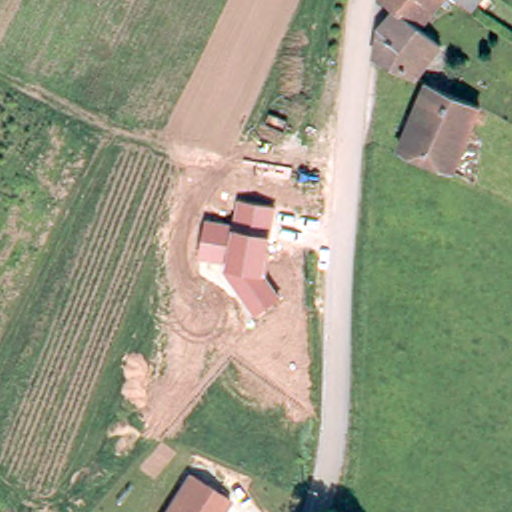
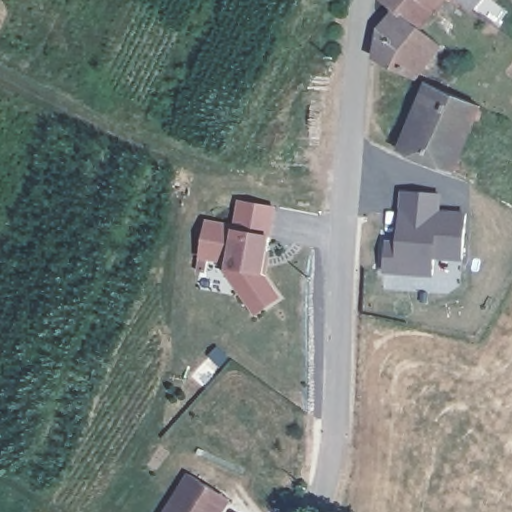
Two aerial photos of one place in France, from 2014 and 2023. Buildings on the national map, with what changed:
unchanged [(440,41),(416,73),(375,54),(378,26),(395,7),(385,0),(440,0),(420,23),(440,41)]
unchanged [(475,0),(470,6),(463,0),(475,0)]
unchanged [(400,150),(428,84),(435,86),(480,106),(452,172),(400,150)]
new [(442,210),(467,212),(463,261),(435,259),(434,277),(395,274),(383,273),(386,241),(398,242),(402,191),(444,194),(442,210)]
unchanged [(276,207),(266,272),(285,296),(256,317),(226,269),(229,260),(200,260),(206,219),(235,223),(239,199),(276,207)]
unchanged [(231,498),(222,512),(162,512),(187,471),(231,498)]

